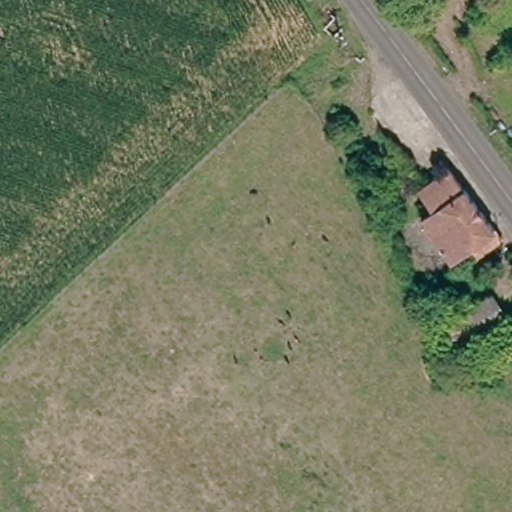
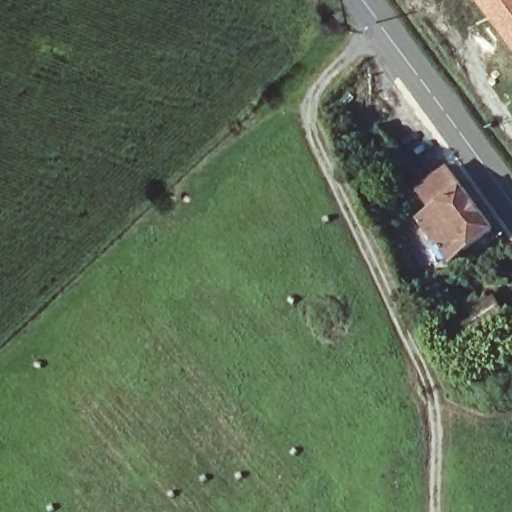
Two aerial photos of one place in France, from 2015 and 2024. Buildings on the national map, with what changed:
new [(512,0),(512,53),(474,0),(512,0)]
unchanged [(407,166),(381,130),(402,117),(428,153),(407,166)]
unchanged [(493,230),(501,240),(478,258),(470,248),(452,262),(420,220),(434,209),(420,191),(450,169),(495,229),(493,230)]
unchanged [(512,322),(463,354),(450,332),(498,299),(512,320),(512,322)]

